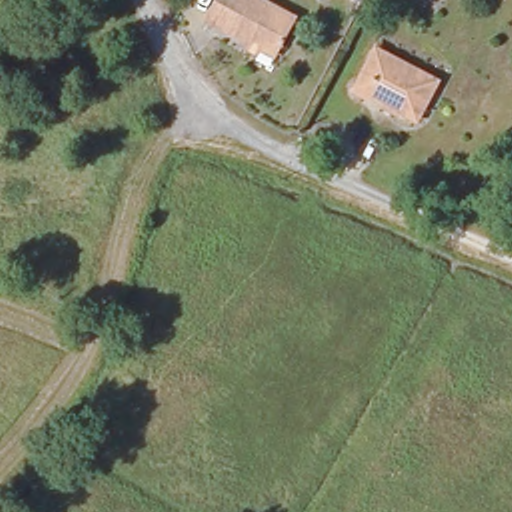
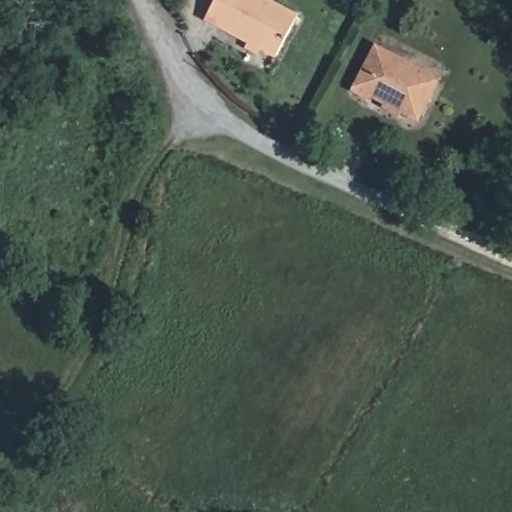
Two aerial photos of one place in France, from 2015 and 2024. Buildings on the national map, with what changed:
unchanged [(198,19),(207,0),(264,0),(287,10),(269,52),(198,19)]
unchanged [(416,119),(352,87),(371,48),(434,79),(416,119)]

